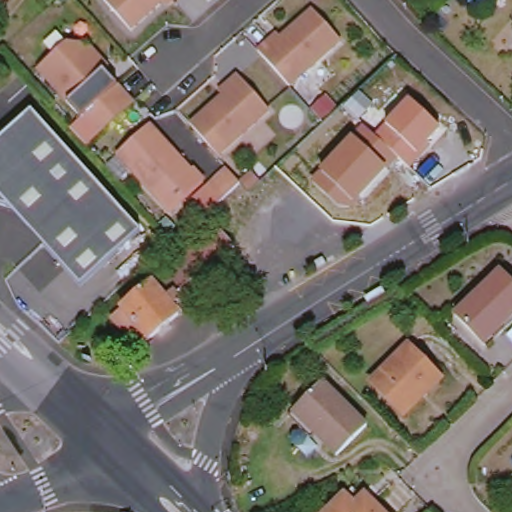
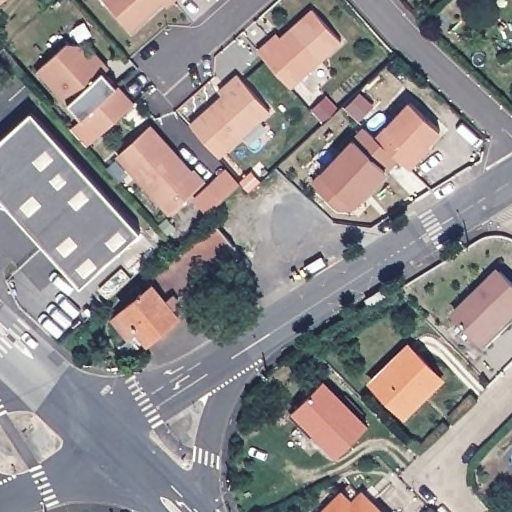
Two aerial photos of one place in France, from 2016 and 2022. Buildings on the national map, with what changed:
unchanged [(0,9),(0,0),(11,0),(0,9)]
unchanged [(163,6),(137,30),(110,0),(177,0),(172,5),(166,10),(163,6)]
unchanged [(285,29),(292,22),(305,11),(337,46),(292,87),(263,55),(289,32),(285,29)]
unchanged [(86,50),(90,46),(105,62),(110,68),(106,72),(119,86),(83,119),(39,70),(68,44),(80,45),(86,50)]
unchanged [(220,100),(225,95),(238,84),(270,120),(225,160),(196,128),(222,105),(220,100)]
unchanged [(413,170),(400,161),(388,175),(358,207),(345,213),(315,182),(324,175),(357,137),(366,128),(377,137),(387,129),(412,102),(444,133),(413,170)]
unchanged [(0,208),(0,150),(37,116),(148,236),(88,291),(50,250),(16,212),(0,208)]
unchanged [(195,175),(208,186),(172,218),(120,160),(149,134),(154,129),(172,150),(197,174),(195,175)]
unchanged [(228,173),(241,187),(223,204),(210,190),(228,173)]
unchanged [(499,272),(512,286),(512,314),(502,323),(505,326),(486,346),(455,316),(499,272)]
unchanged [(151,346),(139,351),(112,320),(123,309),(156,282),(185,316),(151,346)]
unchanged [(376,388),(413,352),(445,383),(430,398),(424,391),(402,414),(376,388)]
unchanged [(293,411),(322,382),(366,427),(337,455),(293,411)]
unchanged [(350,509),(361,499),(374,512),(313,512),(334,492),(350,509)]

